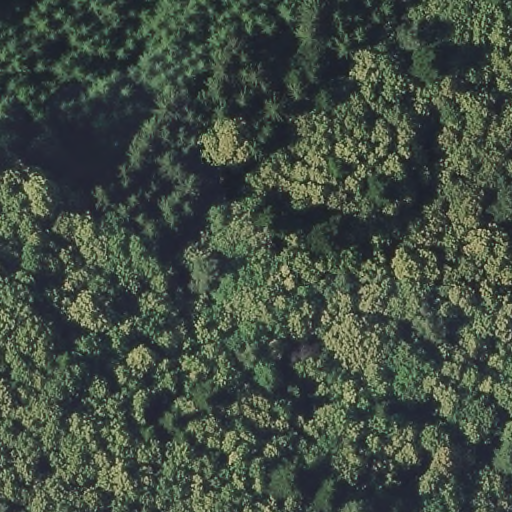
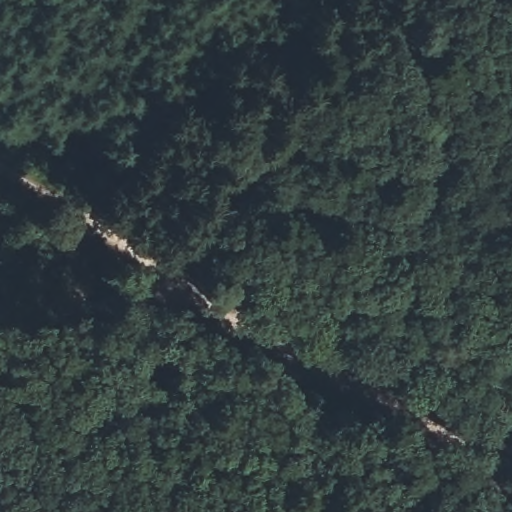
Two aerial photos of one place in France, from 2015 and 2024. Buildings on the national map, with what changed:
unchanged [(45,299),(43,301),(41,302),(40,303),(37,304),(35,305),(33,306),(31,306),(30,306),(27,306),(25,305),(23,305),(22,304),(20,303),(19,302),(17,301),(15,299),(14,297),(13,295),(12,293),(11,291),(11,289),(11,287),(11,285),(11,282),(12,280),(13,278),(15,276),(15,275),(17,273),(20,271),(21,270),(22,269),(24,269),(26,268),(28,268),(30,268),(32,268),(34,268),(36,268),(38,269),(40,270),(42,271),(45,274),(46,276),(47,278),(48,280),(48,282),(49,283),(50,287),(49,290),(48,292),(48,294),(46,297),(45,299)]

